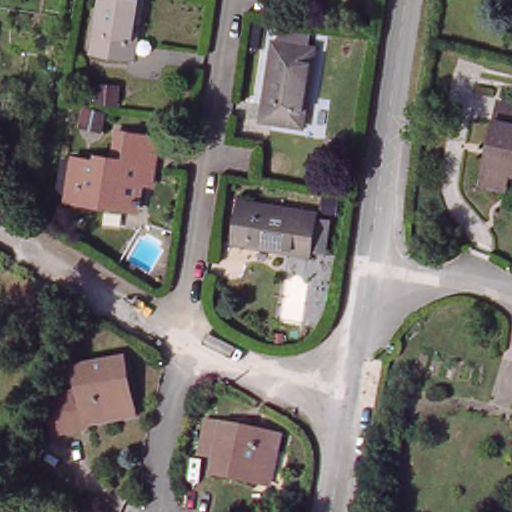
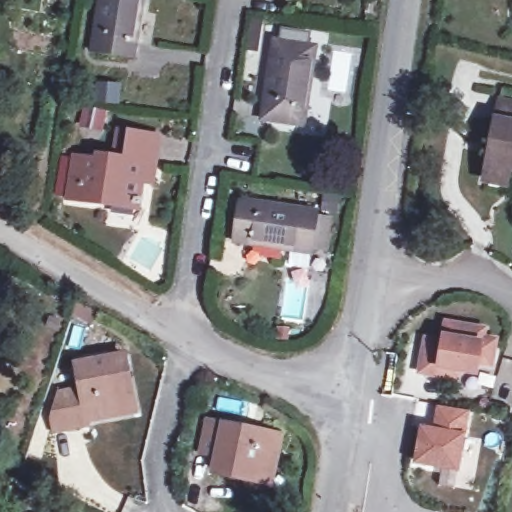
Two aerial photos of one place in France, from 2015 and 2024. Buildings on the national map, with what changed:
unchanged [(104,0),(143,0),(135,59),(93,53),(99,11),(102,12),(104,0)]
unchanged [(274,67),(270,66),(275,42),(317,49),(304,128),(262,121),(269,80),(272,80),(274,67)]
unchanged [(504,194),(482,191),(497,113),(512,117),(512,178),(507,177),(504,194)]
unchanged [(147,182),(143,211),(74,200),(80,158),(104,162),(104,165),(117,167),(123,131),(165,138),(160,168),(157,184),(147,182)]
unchanged [(280,210),(294,213),(295,210),(319,214),(312,255),(234,243),(240,201),(281,208),(280,210)]
new [(447,369),(429,366),(435,333),(452,336),(455,317),(493,323),(492,332),(504,334),(500,359),(487,357),(485,368),(468,365),(467,373),(447,369)]
unchanged [(130,407),(83,417),(72,360),(121,352),(130,407)]
unchanged [(47,416),(55,388),(70,386),(76,423),(50,429),(47,416)]
new [(432,428),(438,405),(474,413),(467,435),(459,473),(412,464),(421,427),(432,428)]
unchanged [(256,477),(215,469),(217,452),(202,449),(208,418),(224,421),(280,433),(274,464),(271,479),(256,477)]

